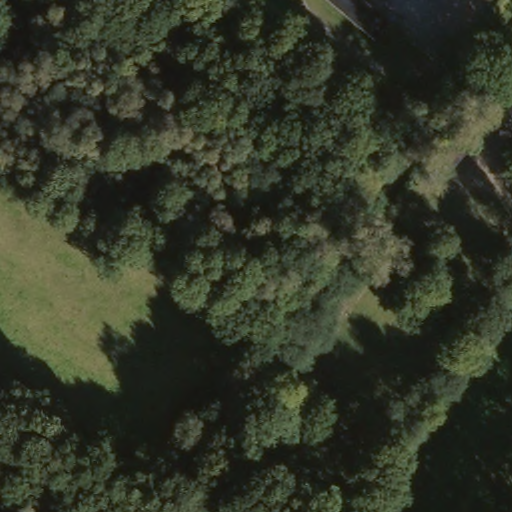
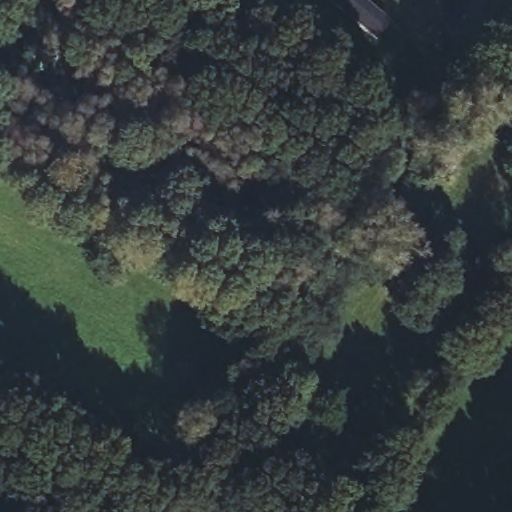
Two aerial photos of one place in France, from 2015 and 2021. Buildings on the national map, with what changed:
unchanged [(376,33),(338,0),(362,0),(386,21),(376,33)]
unchanged [(456,131),(476,108),(488,118),(468,141),(456,131)]

